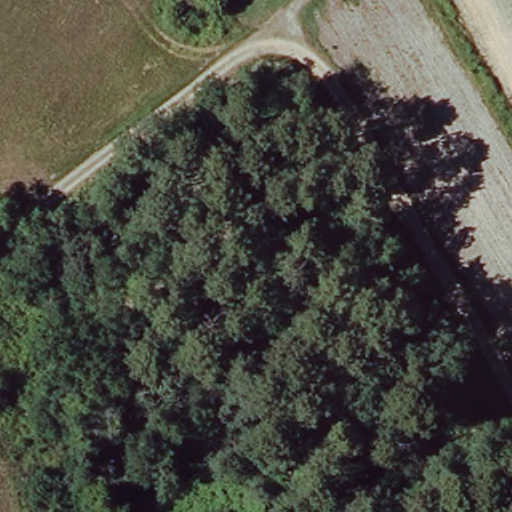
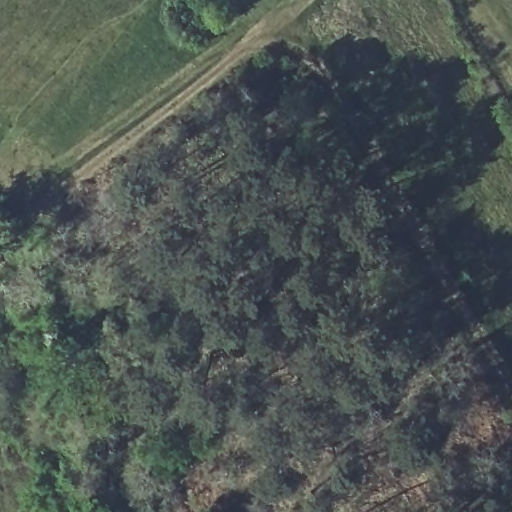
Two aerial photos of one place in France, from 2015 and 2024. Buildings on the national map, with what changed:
unchanged [(178,9),(187,0),(212,0),(231,16),(208,36),(178,9)]

